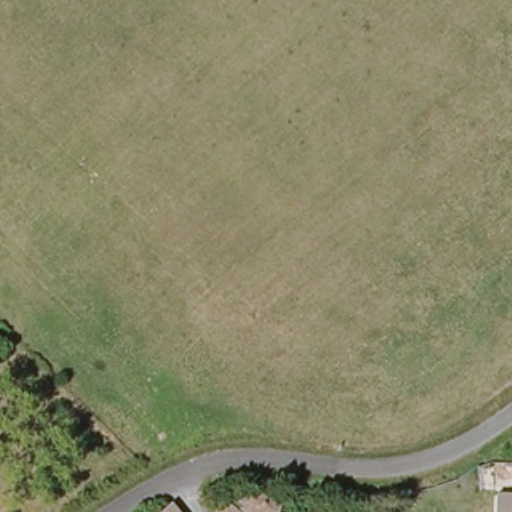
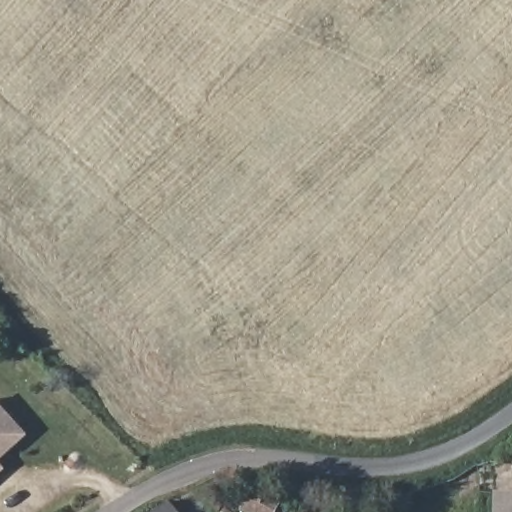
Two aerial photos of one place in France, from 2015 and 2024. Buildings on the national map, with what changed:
new [(0,458),(0,402),(28,433),(0,458)]
new [(0,461),(5,466),(0,471),(0,461)]
unchanged [(263,512),(243,499),(249,489),(260,495),(265,488),(289,504),(283,512),(263,512)]
unchanged [(512,492),(512,512),(509,512),(509,492),(512,492)]
unchanged [(180,512),(168,512),(175,506),(180,512)]

